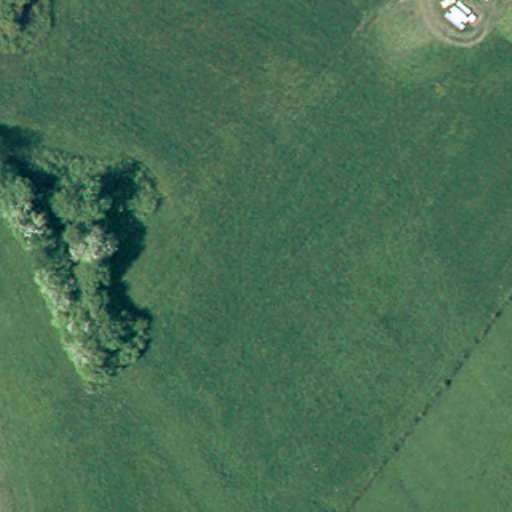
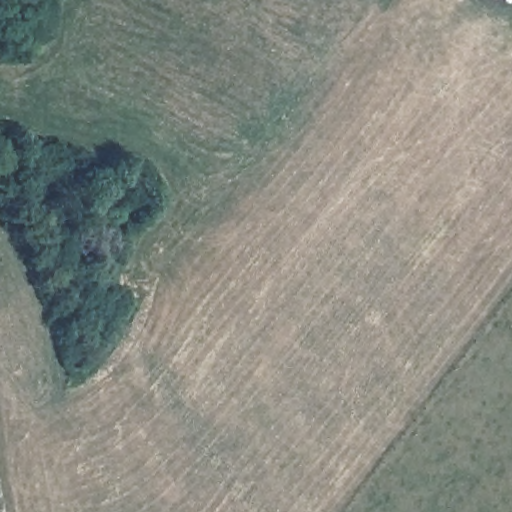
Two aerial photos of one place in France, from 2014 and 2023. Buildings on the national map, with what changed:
[]

